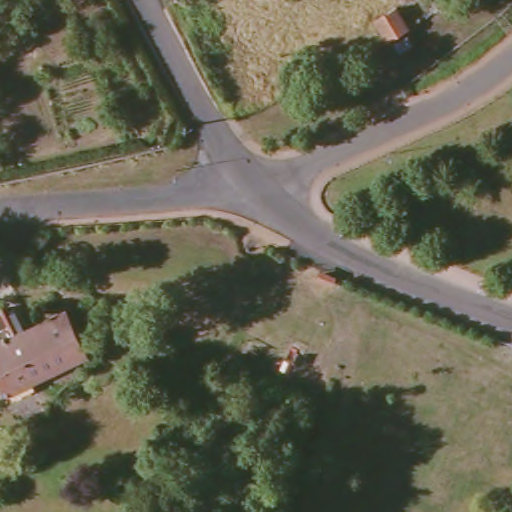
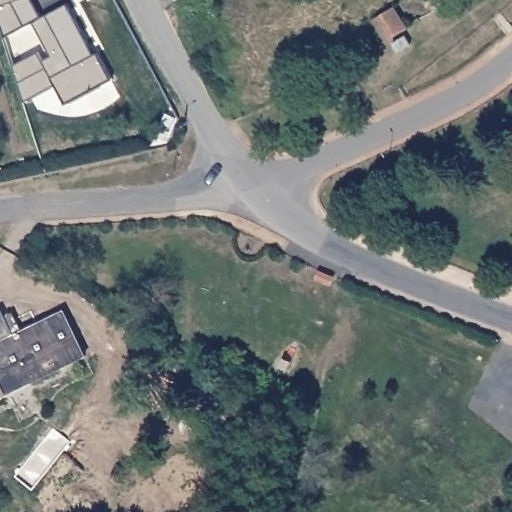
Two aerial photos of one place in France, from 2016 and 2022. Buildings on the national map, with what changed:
new [(42,14),(67,0),(90,41),(86,44),(91,53),(99,49),(114,76),(67,102),(57,82),(25,100),(0,19),(0,0),(35,0),(42,14)]
unchanged [(433,0),(456,0),(438,10),(433,0)]
unchanged [(390,40),(377,19),(397,6),(410,27),(390,40)]
unchanged [(395,42),(406,35),(412,44),(400,51),(395,42)]
unchanged [(10,335),(59,310),(81,354),(0,393),(0,316),(10,335)]

